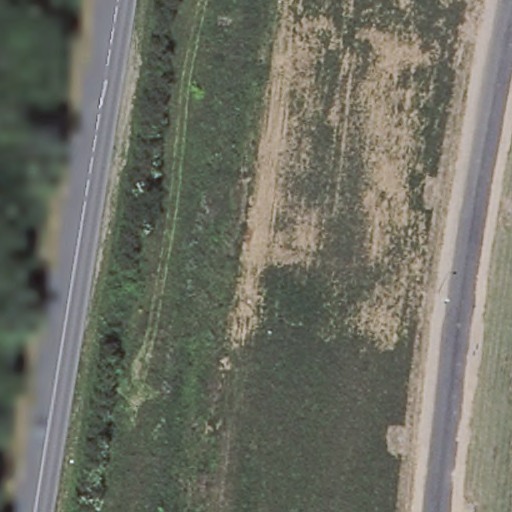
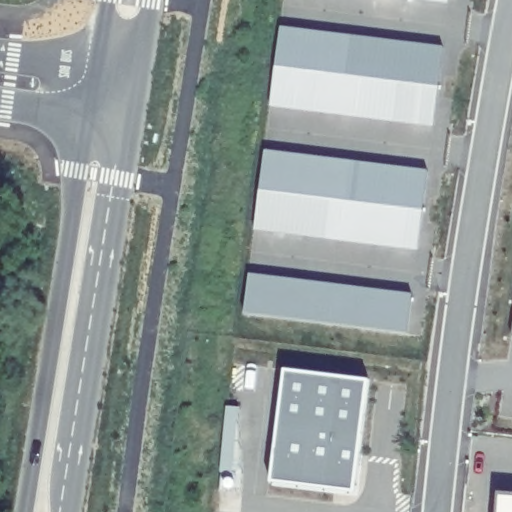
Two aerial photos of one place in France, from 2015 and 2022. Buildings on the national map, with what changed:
new [(450,3),(423,0),(451,0),(450,3)]
new [(280,28),(443,47),(434,126),(269,106),(280,28)]
new [(263,151),(428,171),(420,250),(253,232),(263,151)]
new [(249,273),(413,294),(408,334),(243,314),(249,273)]
new [(285,367),(372,380),(357,494),(269,483),(285,367)]
new [(495,512),(497,491),(512,492),(512,512),(495,512)]

